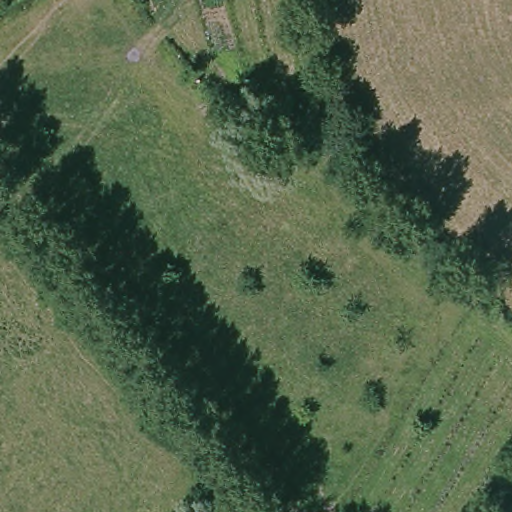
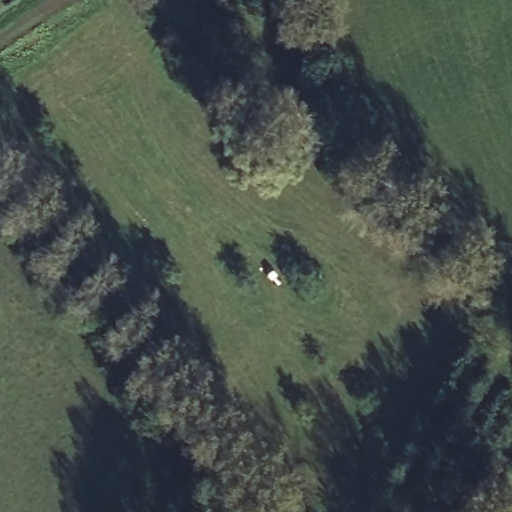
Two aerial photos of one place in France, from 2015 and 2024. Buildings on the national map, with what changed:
[]

